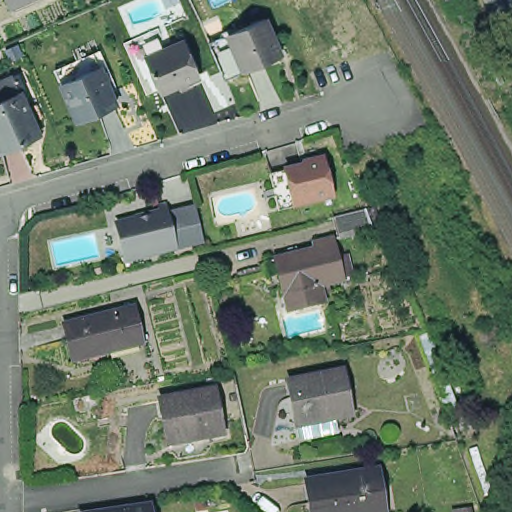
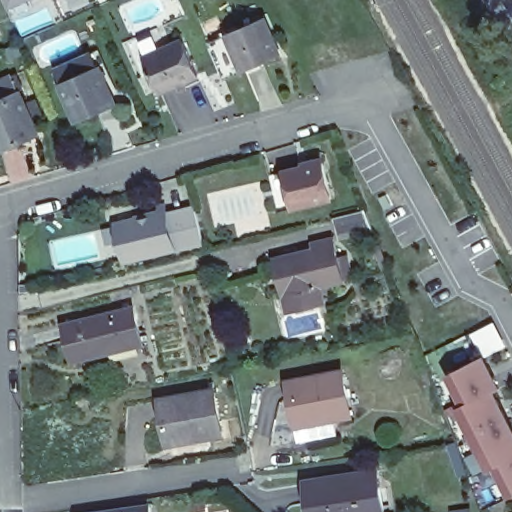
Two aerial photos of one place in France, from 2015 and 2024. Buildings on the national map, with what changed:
unchanged [(14,0),(27,0),(16,5),(14,0)]
unchanged [(270,4),(286,43),(249,59),(230,66),(213,28),(232,20),(270,4)]
unchanged [(179,34),(195,71),(157,87),(140,50),(179,34)]
unchanged [(92,64),(109,101),(72,117),(57,80),(92,64)]
unchanged [(0,149),(0,96),(10,92),(29,135),(0,149)]
unchanged [(282,165),(297,162),(335,153),(343,190),(305,199),(290,202),(282,165)]
unchanged [(127,256),(122,236),(118,219),(129,216),(165,208),(168,210),(197,204),(205,237),(127,256)]
unchanged [(375,232),(341,241),(336,222),(348,219),(369,214),(375,232)]
unchanged [(295,297),(285,300),(275,262),(316,252),(315,246),(335,242),(345,286),(323,290),(327,307),(299,313),(295,297)]
unchanged [(135,307),(144,345),(73,363),(64,325),(135,307)]
new [(510,498),(495,469),(489,471),(456,409),(462,405),(447,376),(486,356),(502,388),(497,391),(512,422),(512,497),(510,498)]
unchanged [(297,409),(290,376),(346,366),(352,400),(297,409)]
unchanged [(175,446),(172,436),(167,401),(220,390),(228,426),(230,435),(175,446)]
unchanged [(337,415),(340,428),(302,435),(297,409),(352,400),(354,412),(337,415)]
unchanged [(382,470),(390,512),(318,512),(314,480),(382,470)]
unchanged [(156,505),(157,512),(106,512),(156,505)]

